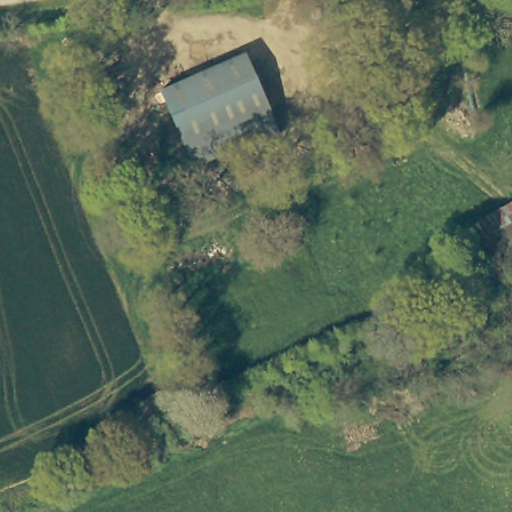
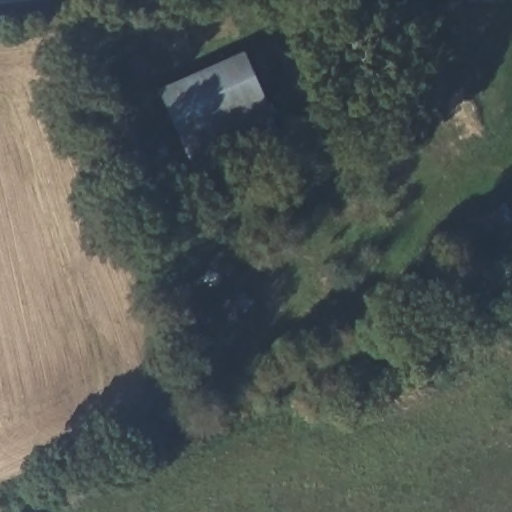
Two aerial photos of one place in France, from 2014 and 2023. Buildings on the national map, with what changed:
unchanged [(241,50),(275,126),(191,163),(158,87),(241,50)]
unchanged [(478,217),(512,200),(512,244),(470,266),(466,253),(489,242),(478,217)]

